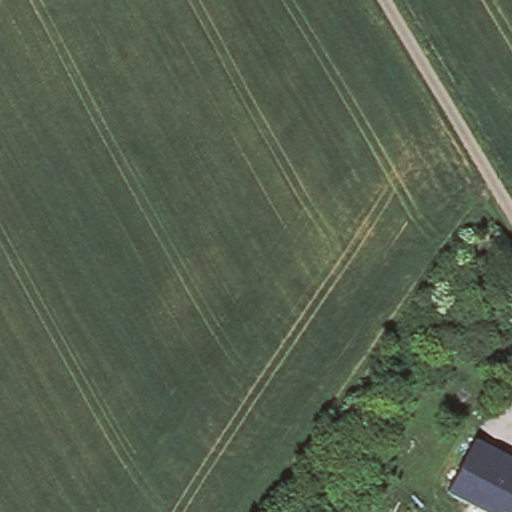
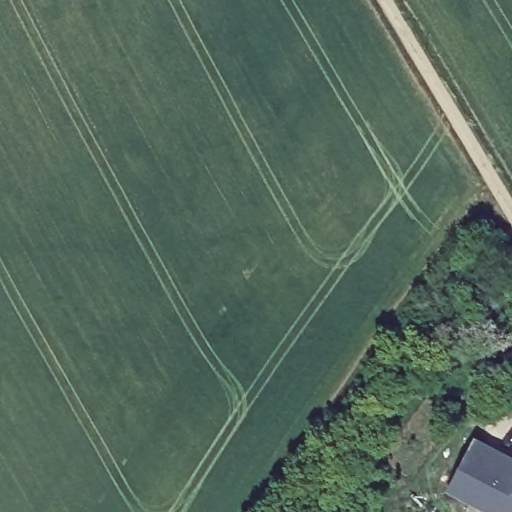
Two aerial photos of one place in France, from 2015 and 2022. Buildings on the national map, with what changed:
unchanged [(506,510),(504,512),(486,512),(450,493),(477,437),(512,455),(512,512),(509,512),(506,510)]

